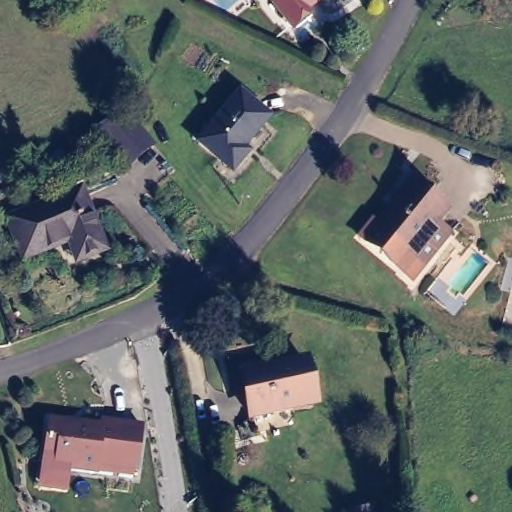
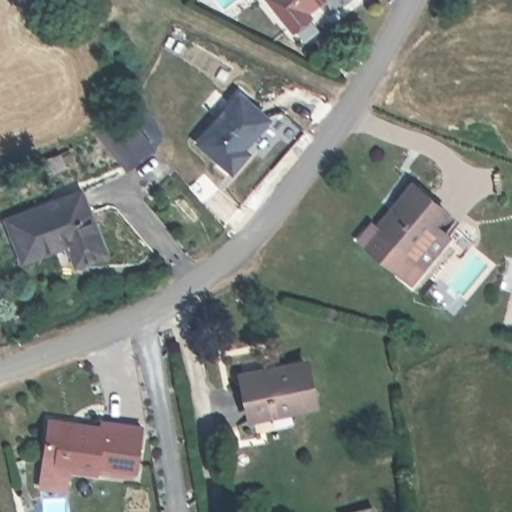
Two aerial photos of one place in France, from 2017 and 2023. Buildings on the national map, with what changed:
unchanged [(311,15),(297,24),(290,20),(276,0),(328,0),(311,12),(311,15)]
unchanged [(241,144),(248,150),(231,172),(196,144),(235,94),(265,116),(241,144)]
unchanged [(95,129),(125,105),(155,145),(125,170),(95,129)]
unchanged [(456,236),(433,268),(418,258),(407,273),(367,243),(379,227),(385,232),(419,186),(452,211),(442,225),(456,236)]
unchanged [(98,245),(75,255),(65,233),(21,251),(6,217),(75,189),(98,245)]
unchanged [(325,409),(264,422),(256,385),(285,379),(285,374),(315,367),(325,409)]
unchanged [(51,478),(51,468),(43,457),(46,424),(63,425),(66,434),(99,436),(100,425),(140,429),(136,474),(99,472),(98,478),(67,474),(67,479),(51,478)]
unchanged [(376,512),(360,512),(375,509),(376,512)]

